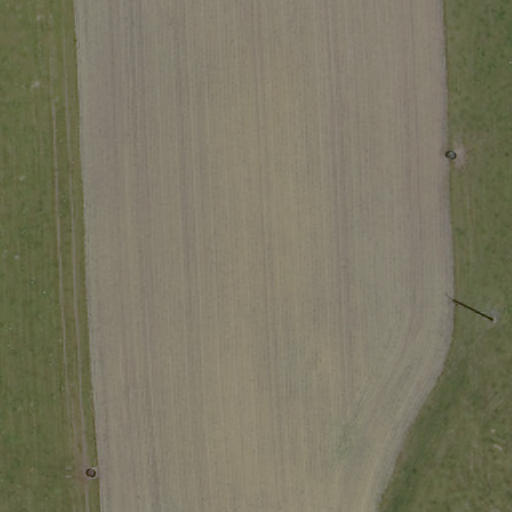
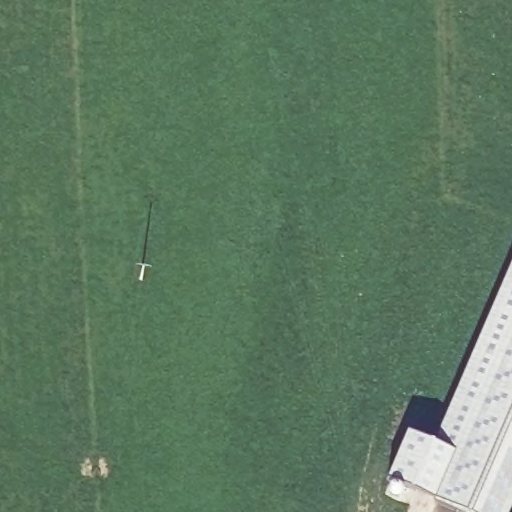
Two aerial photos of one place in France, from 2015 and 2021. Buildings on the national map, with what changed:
new [(388,482),(407,435),(433,447),(512,267),(512,510),(511,512),(456,512),(388,482)]

